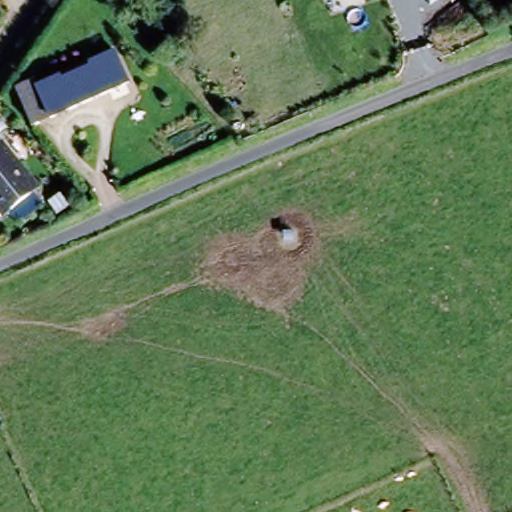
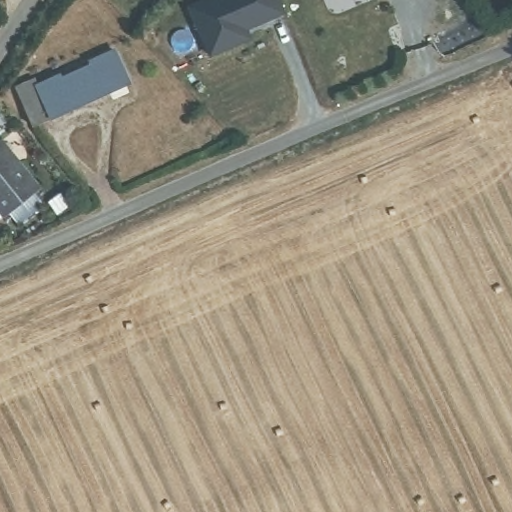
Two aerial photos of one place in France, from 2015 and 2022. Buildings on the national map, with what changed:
new [(236,34),(201,48),(182,0),(275,0),(275,7),(241,22),(244,31),(236,34)]
unchanged [(35,80),(38,87),(60,77),(61,82),(94,67),(93,63),(118,51),(131,85),(33,127),(16,88),(35,80)]
unchanged [(42,192),(3,220),(0,218),(0,141),(4,138),(42,192)]

